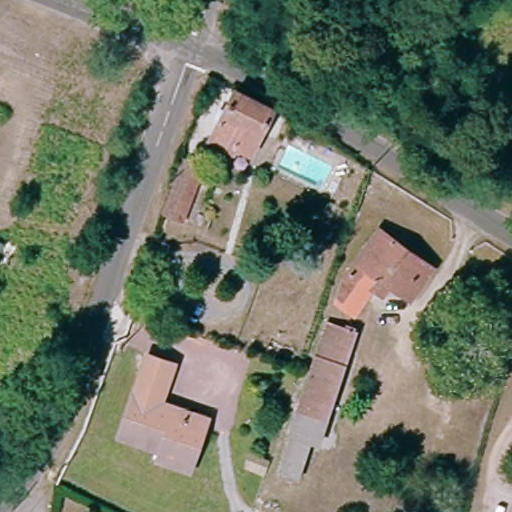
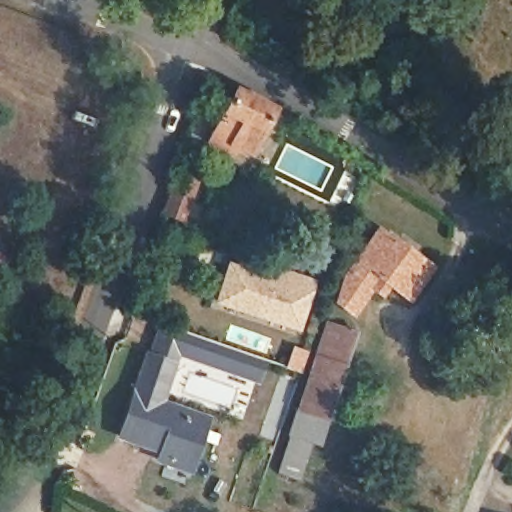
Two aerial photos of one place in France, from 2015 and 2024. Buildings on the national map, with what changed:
unchanged [(222,125),(220,123),(232,99),(269,119),(246,161),(227,152),(231,145),(217,138),(222,125)]
unchanged [(177,176),(196,184),(184,217),(165,211),(177,176)]
new [(10,257),(0,252),(0,230),(9,234),(19,240),(10,257)]
unchanged [(362,283),(346,273),(377,231),(431,267),(408,299),(377,277),(369,288),(362,283)]
unchanged [(182,239),(173,262),(160,257),(168,234),(182,239)]
new [(246,309),(220,300),(232,266),(257,274),(260,265),(315,284),(302,321),(299,328),(246,309)]
unchanged [(327,416),(302,407),(330,321),(356,329),(327,416)]
unchanged [(183,476),(147,462),(151,455),(111,441),(141,355),(172,365),(159,403),(202,418),(183,476)]
unchanged [(317,450),(307,448),(296,481),(281,475),(302,407),(327,416),(317,450)]

